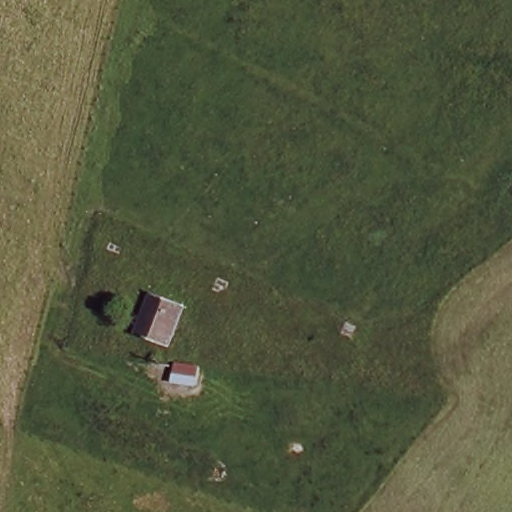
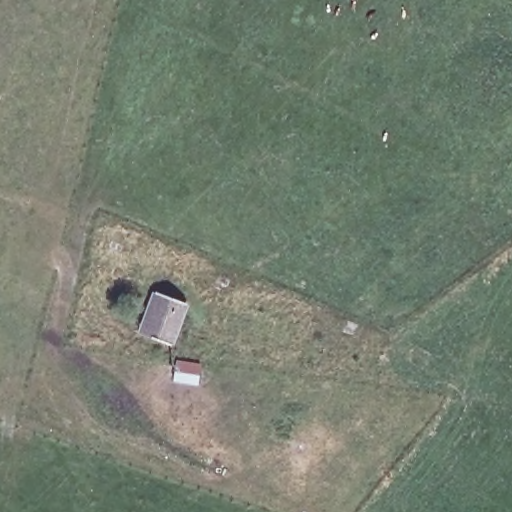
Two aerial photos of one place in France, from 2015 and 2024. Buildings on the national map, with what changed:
unchanged [(145,311),(158,289),(191,308),(170,343),(148,331),(136,324),(145,311)]
unchanged [(206,361),(204,384),(176,380),(178,357),(206,361)]

